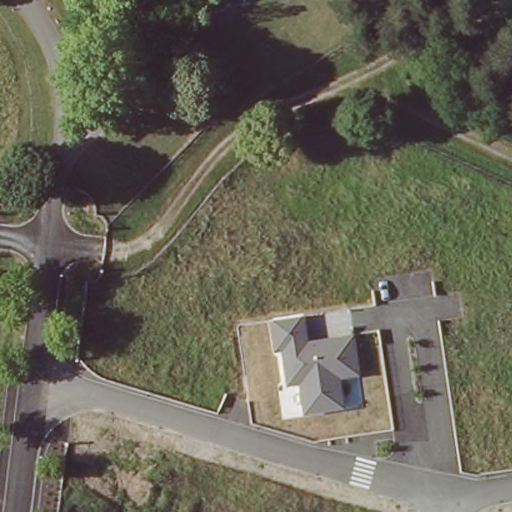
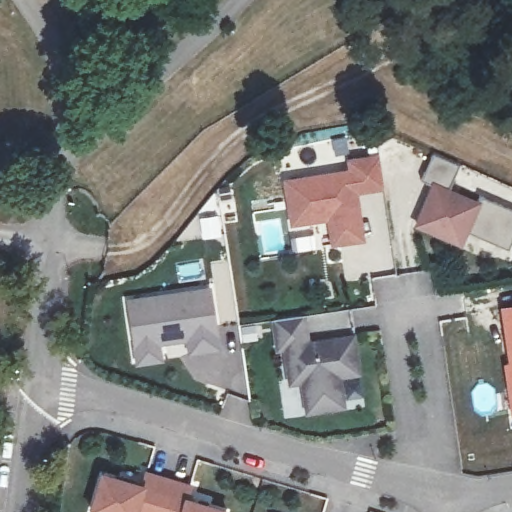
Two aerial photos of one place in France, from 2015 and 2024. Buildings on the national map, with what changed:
new [(447,189),(476,201),(479,196),(512,210),(512,240),(508,250),(467,233),(461,248),(410,225),(429,184),(420,180),(431,154),(458,164),(447,189)]
new [(349,170),(347,159),(377,155),(381,186),(348,190),(350,199),(354,199),(360,238),(331,242),(327,216),(290,222),(283,179),(349,170)]
new [(134,361),(133,348),(127,310),(126,299),(152,295),(207,287),(216,346),(187,350),(185,337),(162,339),(162,335),(155,337),(156,345),(158,357),(134,361)]
new [(512,417),(509,417),(501,365),(508,364),(499,309),(512,307),(512,417)]
unchanged [(305,315),(307,341),(354,334),(361,377),(341,379),(347,409),(303,414),(299,386),(287,387),(281,352),(272,352),(269,320),(305,315)]
new [(99,473),(139,485),(143,472),(166,478),(156,512),(98,512),(88,509),(99,473)]
new [(166,478),(188,485),(184,499),(224,511),(224,512),(156,512),(166,478)]

